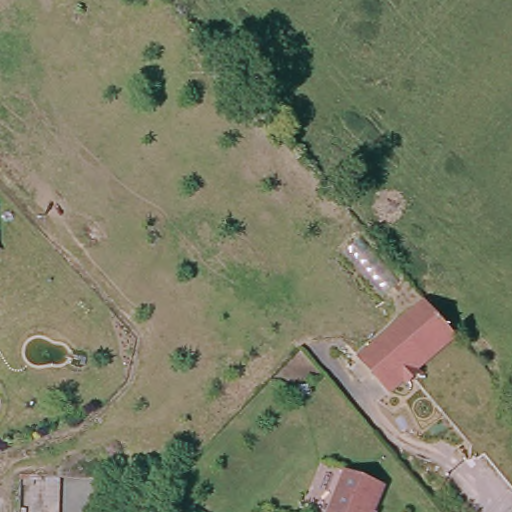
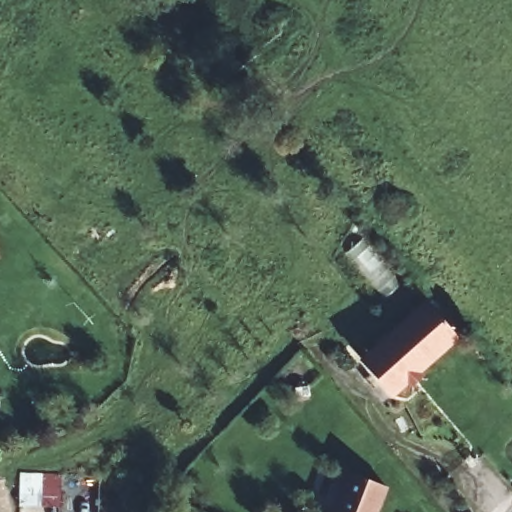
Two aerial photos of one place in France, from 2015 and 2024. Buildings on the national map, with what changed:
unchanged [(369,348),(433,293),(469,332),(429,368),(432,373),(419,383),(417,380),(405,389),(369,348)]
unchanged [(405,389),(389,401),(354,361),(369,348),(405,389)]
unchanged [(391,486),(382,512),(333,512),(348,471),(391,486)]

